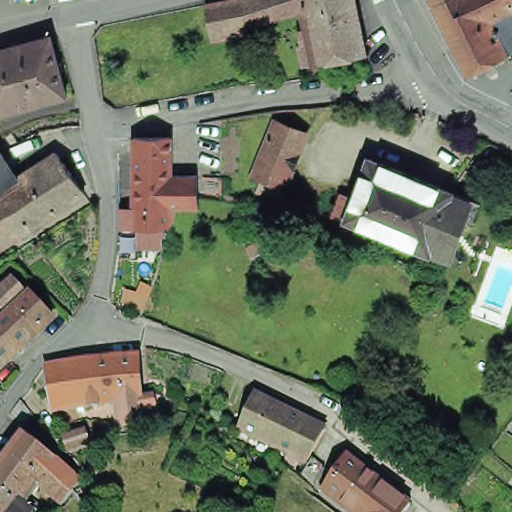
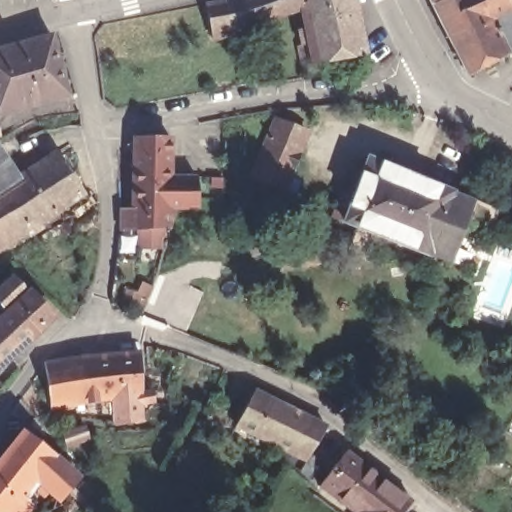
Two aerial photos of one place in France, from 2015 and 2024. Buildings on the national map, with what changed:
unchanged [(248,23),(249,29),(213,35),(205,0),(299,0),(301,6),(248,23)]
unchanged [(304,63),(299,41),(306,40),(306,34),(301,35),(299,27),(305,25),(301,6),(299,0),(356,0),(367,51),(304,63)]
unchanged [(509,46),(468,67),(434,0),(512,0),(512,40),(508,43),(509,46)]
unchanged [(67,96),(0,116),(0,50),(51,36),(51,38),(67,96)]
unchanged [(282,187),(259,179),(260,166),(253,162),(276,106),(308,118),(282,187)]
unchanged [(198,208),(198,210),(197,210),(178,210),(171,210),(172,228),(134,232),(119,230),(119,214),(120,211),(131,211),(131,184),(133,140),(133,139),(168,138),(169,129),(176,128),(192,125),(198,179),(198,208)]
unchanged [(18,178),(0,190),(0,150),(2,153),(18,178)]
unchanged [(0,250),(0,190),(18,178),(42,162),(56,153),(83,194),(0,250)]
unchanged [(474,219),(466,216),(451,259),(431,253),(429,255),(334,218),(343,195),(352,197),(368,159),(455,192),(480,201),(474,219)]
unchanged [(251,253),(244,240),(268,229),(274,240),(251,253)]
unchanged [(51,319),(27,342),(4,314),(9,309),(0,297),(0,292),(16,272),(33,289),(39,296),(56,314),(51,319)]
unchanged [(0,369),(0,310),(4,314),(27,342),(6,363),(1,368),(0,369)]
unchanged [(120,421),(116,398),(55,405),(49,361),(144,349),(146,393),(148,417),(120,421)]
unchanged [(309,432),(296,451),(226,414),(244,382),(315,420),(316,421),(309,432)]
unchanged [(24,427),(54,452),(78,474),(60,497),(35,476),(21,493),(31,500),(22,512),(0,512),(0,457),(24,427)]
unchanged [(301,472),(289,464),(316,427),(328,436),(301,472)]
unchanged [(88,443),(65,449),(63,435),(84,429),(88,443)]
unchanged [(321,482),(346,447),(411,498),(399,512),(359,512),(321,482)]
unchanged [(432,462),(449,475),(442,485),(422,470),(429,460),(432,462)]

